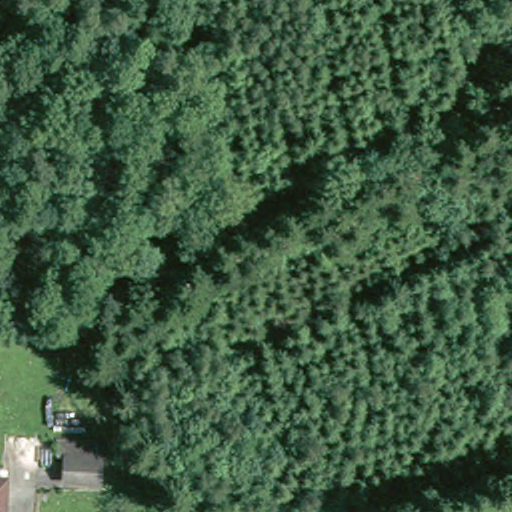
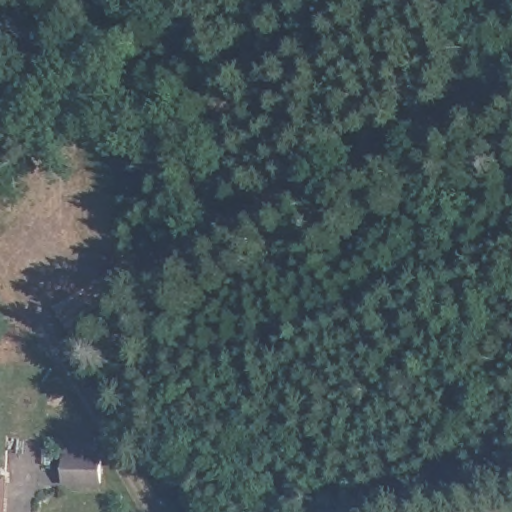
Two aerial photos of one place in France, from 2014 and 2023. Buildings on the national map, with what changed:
unchanged [(67,486),(67,461),(103,463),(102,487),(67,486)]
unchanged [(8,512),(0,512),(0,480),(9,480),(8,512)]

